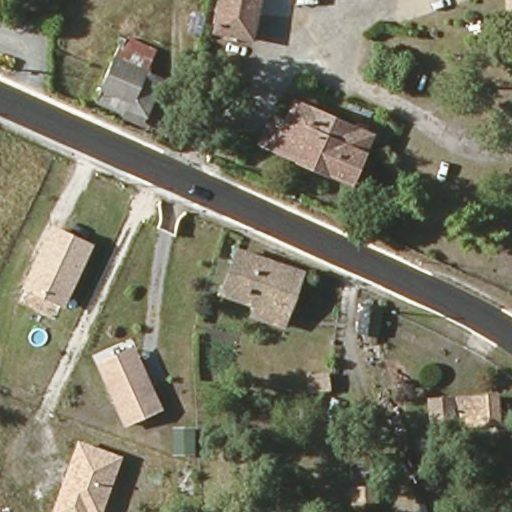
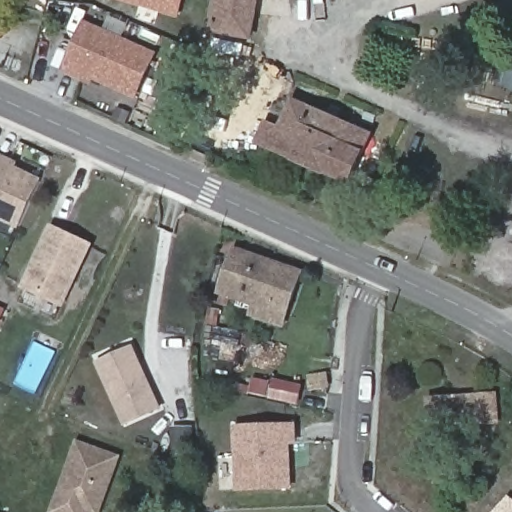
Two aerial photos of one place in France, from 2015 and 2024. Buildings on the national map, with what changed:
new [(180,19),(113,0),(185,0),(180,19)]
unchanged [(250,37),(214,31),(220,0),(261,0),(250,37)]
new [(151,58),(136,93),(96,76),(94,81),(65,69),(81,29),(151,58)]
demolished [(148,114),(129,106),(126,112),(96,99),(111,58),(161,79),(148,114)]
unchanged [(368,132),(346,183),(260,146),(268,125),(281,129),(295,103),(368,132)]
new [(19,230),(0,221),(0,154),(19,163),(16,168),(41,181),(19,230)]
unchanged [(64,309),(21,288),(52,226),(95,245),(64,309)]
unchanged [(282,326),(252,316),(255,306),(221,293),(237,251),(299,275),(282,326)]
demolished [(382,310),(378,338),(355,335),(360,306),(382,310)]
unchanged [(124,423),(103,372),(100,363),(134,349),(138,358),(159,408),(124,423)]
demolished [(338,385),(337,372),(349,371),(349,384),(338,385)]
unchanged [(314,388),(313,375),(324,374),(325,388),(314,388)]
unchanged [(446,429),(443,404),(462,401),(463,406),(493,401),(492,396),(501,395),(493,422),(446,429)]
new [(287,444),(288,487),(240,489),(237,430),(293,427),(294,443),(287,444)]
new [(173,429),(194,428),(194,454),(173,454),(173,429)]
unchanged [(122,457),(102,512),(52,512),(77,441),(122,457)]
demolished [(0,464),(8,465),(7,475),(0,474),(0,464)]
demolished [(390,503),(381,504),(380,486),(390,485),(390,503)]
new [(496,512),(509,496),(512,498),(512,512),(496,512)]

